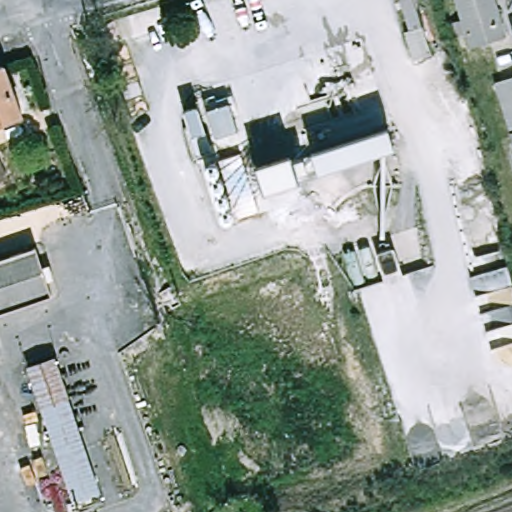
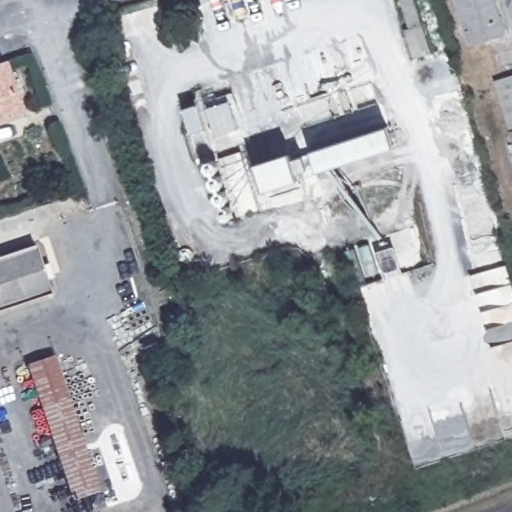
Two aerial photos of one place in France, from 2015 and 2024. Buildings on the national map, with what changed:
unchanged [(427,52),(410,57),(397,14),(403,12),(399,0),(412,0),(427,52)]
unchanged [(508,35),(473,45),(460,0),(498,0),(508,35)]
unchanged [(0,121),(0,65),(7,62),(25,112),(0,121)]
unchanged [(496,81),(512,76),(512,132),(496,81)]
unchanged [(245,98),(252,126),(215,137),(206,110),(245,98)]
unchanged [(205,130),(210,149),(195,152),(191,134),(183,108),(198,104),(205,130)]
unchanged [(317,171),(310,150),(388,125),(395,146),(317,171)]
unchanged [(263,211),(240,218),(222,159),(244,151),(263,211)]
unchanged [(262,191),(254,164),(291,152),(300,180),(262,191)]
unchanged [(216,175),(220,175),(222,176),(224,177),(227,185),(225,187),(222,189),(222,191),(224,190),(227,191),(228,192),(231,200),(230,202),(226,204),(227,206),(230,206),(233,208),(234,210),(235,214),(235,217),(233,220),(229,221),(225,221),(222,220),(220,219),(218,216),(217,213),(218,210),(222,208),(220,205),(218,205),(217,205),(215,204),(213,200),(213,197),(215,195),(217,193),(216,190),(214,190),(212,190),(211,189),(209,186),(208,183),(208,180),(210,178),(212,177),(212,174),(208,174),(207,172),(205,169),(205,165),(206,161),(210,160),(213,159),(217,160),(219,162),(220,165),(221,169),(220,170),(218,172),(215,174),(216,175)]
unchanged [(50,296),(0,313),(0,258),(34,246),(50,296)]
unchanged [(63,352),(112,486),(75,500),(26,365),(63,352)]

